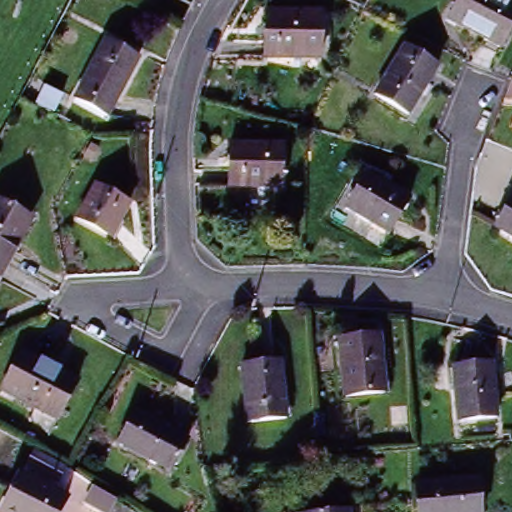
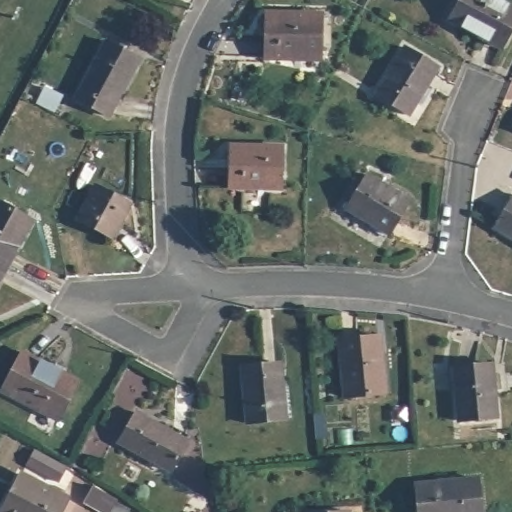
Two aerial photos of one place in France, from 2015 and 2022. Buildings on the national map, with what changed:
unchanged [(512,17),(512,30),(500,51),(452,25),(466,0),(481,0),(512,17)]
unchanged [(263,59),(263,15),(315,15),(317,59),(263,59)]
unchanged [(105,40),(138,60),(107,114),(73,95),(105,40)]
unchanged [(407,113),(375,96),(401,49),(432,66),(407,113)]
unchanged [(275,190),(227,188),(228,152),(277,155),(275,190)]
unchanged [(353,204),(375,174),(413,201),(392,231),(353,204)]
unchanged [(109,241),(75,220),(93,189),(127,209),(109,241)]
unchanged [(0,202),(33,221),(7,265),(0,261),(0,203),(0,202)]
unchanged [(512,207),(512,237),(499,230),(512,207)]
unchanged [(7,265),(0,279),(0,261),(7,265)]
unchanged [(341,344),(378,342),(380,399),(343,400),(341,344)]
unchanged [(22,351),(75,382),(53,418),(0,386),(22,351)]
unchanged [(283,415),(250,418),(246,365),(280,362),(283,415)]
unchanged [(483,365),(490,420),(455,424),(449,368),(483,365)]
unchanged [(167,465),(119,437),(136,408),(183,437),(167,465)]
unchanged [(60,512),(6,512),(0,508),(22,470),(68,497),(60,512)]
unchanged [(479,512),(420,512),(417,485),(475,479),(479,512)]
unchanged [(97,487),(120,499),(132,507),(129,512),(111,512),(88,500),(97,487)]
unchanged [(345,512),(320,512),(345,510),(345,512)]

